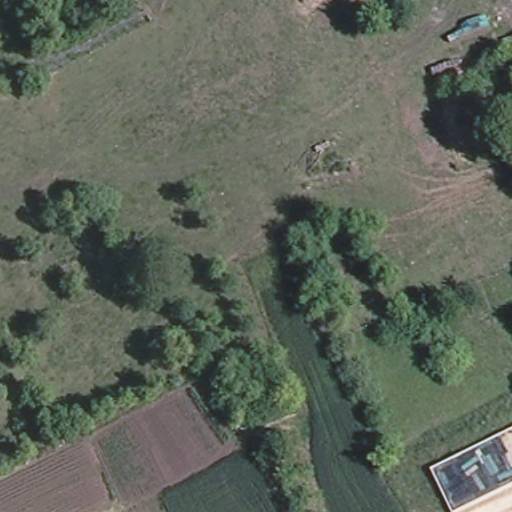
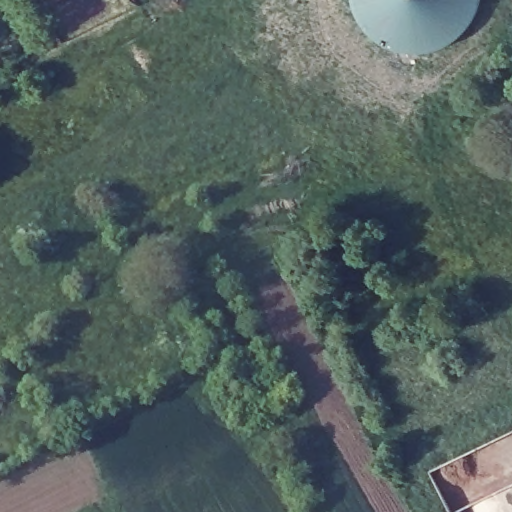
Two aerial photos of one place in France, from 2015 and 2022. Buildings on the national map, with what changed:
new [(480,6),(477,18),(471,29),(463,39),(453,47),(442,53),(430,56),(418,58),(406,56),(394,53),(383,47),(374,39),(366,29),(360,18),(356,6),(355,0),(481,0),(480,6)]

